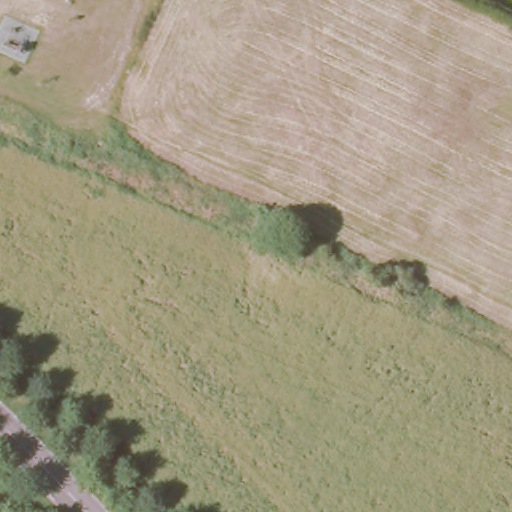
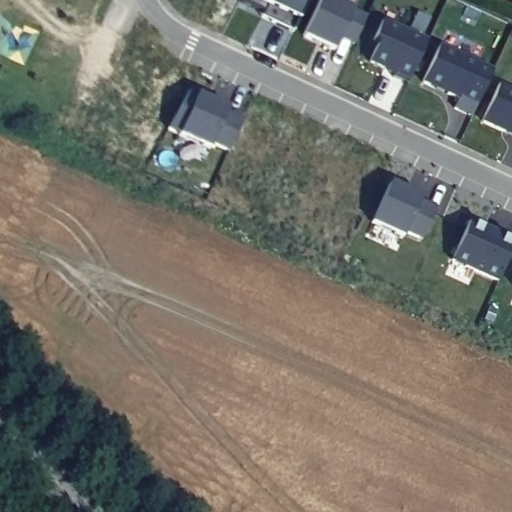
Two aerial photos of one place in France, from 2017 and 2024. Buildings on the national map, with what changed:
new [(257,15),(262,4),(254,0),(306,0),(291,31),(257,15)]
new [(302,37),(319,0),(329,0),(365,17),(359,31),(346,25),(334,51),(302,37)]
new [(427,40),(407,82),(363,62),(383,20),(427,40)]
new [(422,84),(440,45),(492,70),(470,118),(454,110),(460,99),(422,84)]
new [(482,123),(500,84),(512,89),(512,137),(482,123)]
new [(177,110),(186,114),(195,94),(228,109),(227,112),(242,120),(227,152),(209,150),(168,131),(177,110)]
new [(405,201),(410,191),(422,196),(419,201),(434,209),(420,240),(405,233),(402,237),(372,224),(385,192),(405,201)]
new [(512,240),(512,246),(495,283),(450,262),(470,220),(512,240)]

